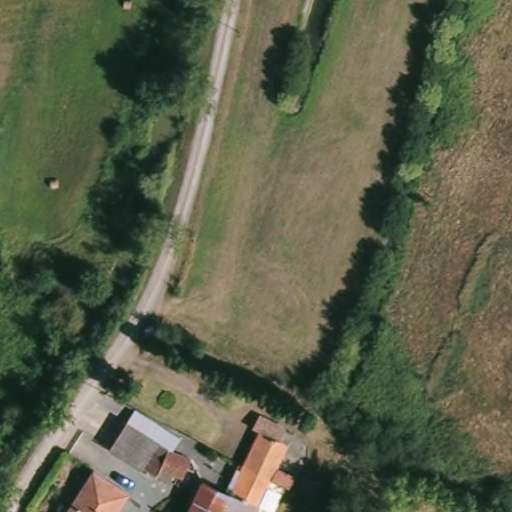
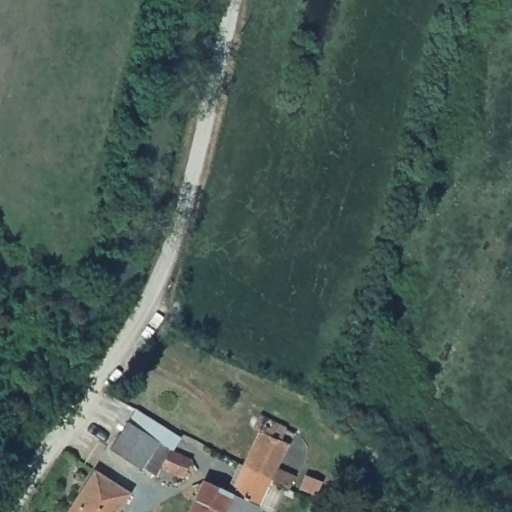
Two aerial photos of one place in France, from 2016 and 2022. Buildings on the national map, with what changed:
unchanged [(254,435),(247,433),(252,420),(286,436),(282,444),(286,446),(275,470),(294,480),(287,493),(267,482),(240,467),(254,435)]
unchanged [(146,479),(145,482),(109,458),(122,434),(127,427),(159,452),(170,458),(186,467),(180,484),(166,476),(162,486),(146,479)]
unchanged [(267,482),(254,512),(249,512),(225,501),(228,494),(240,467),(267,482)]
unchanged [(95,468),(131,492),(129,495),(120,512),(67,512),(95,468)]
unchanged [(221,512),(186,512),(195,494),(198,487),(201,482),(201,481),(228,494),(225,501),(221,512)]
unchanged [(225,501),(249,512),(221,512),(225,501)]

